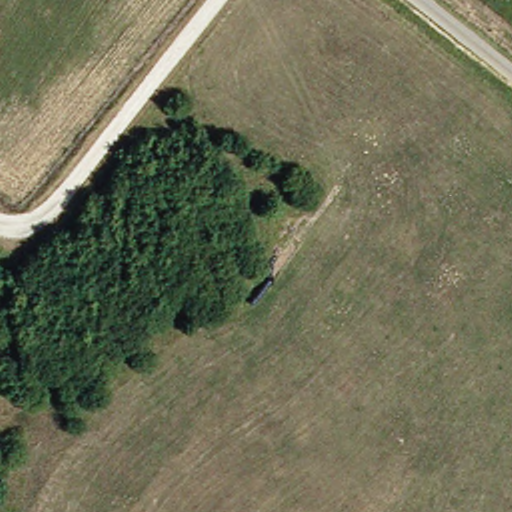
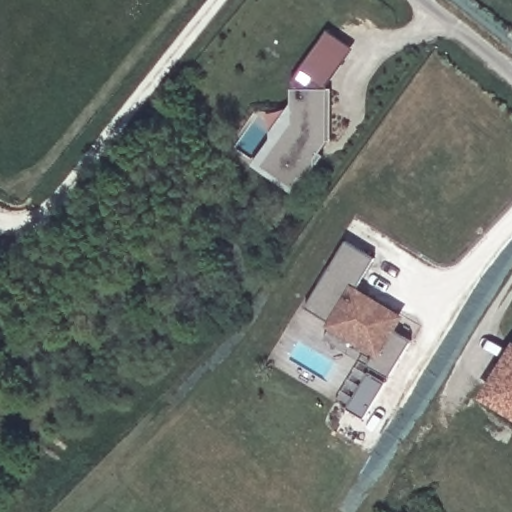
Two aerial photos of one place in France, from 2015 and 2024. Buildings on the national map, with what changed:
new [(289,191),(257,169),(289,124),(289,82),(315,44),(324,31),(351,50),(342,62),(325,87),(325,90),(329,90),(329,143),(324,143),(325,144),(318,155),(321,157),(302,184),(295,195),(289,191)]
new [(370,367),(375,357),(327,329),(331,322),(308,307),(348,243),(376,261),(360,290),(406,318),(396,335),(411,344),(391,379),(370,367)]
new [(482,401),(512,349),(512,418),(482,401)]

